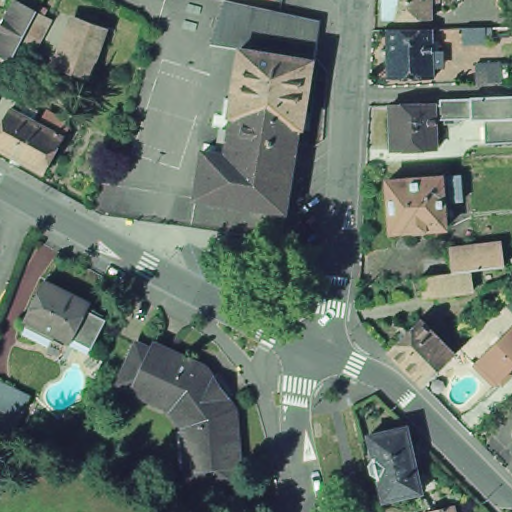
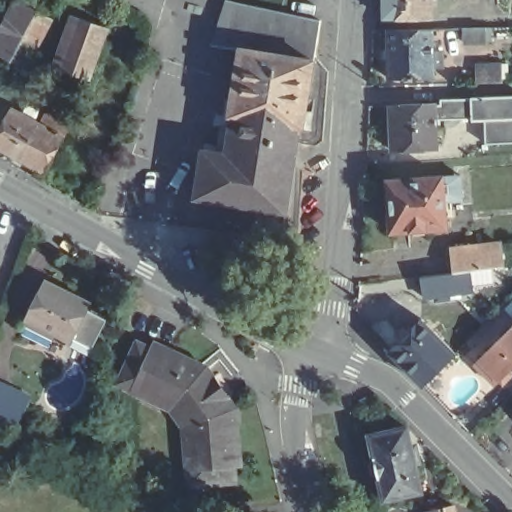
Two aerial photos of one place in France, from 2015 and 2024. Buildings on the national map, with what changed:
unchanged [(20,0),(39,11),(52,18),(27,66),(13,59),(0,53),(0,37),(20,0)]
unchanged [(247,47),(218,42),(232,0),(235,0),(287,11),(325,19),(325,21),(320,59),(247,47)]
unchanged [(380,19),(380,0),(428,0),(428,19),(380,19)]
unchanged [(90,72),(62,62),(75,27),(102,37),(90,72)]
unchanged [(487,42),(464,42),(463,28),(486,28),(487,42)]
unchanged [(443,61),(434,61),(435,78),(390,78),(389,30),(433,30),(434,52),(443,52),(443,61)]
unchanged [(305,125),(291,211),(202,197),(210,150),(222,152),(230,96),(239,97),(247,47),(320,59),(309,126),(305,125)]
unchanged [(478,76),(478,57),(504,57),(505,76),(478,76)]
unchanged [(387,106),(432,104),(437,104),(437,99),(467,98),(512,96),(512,119),(482,120),(468,121),(468,109),(432,110),(433,149),(388,151),(387,106)]
unchanged [(0,147),(0,131),(13,107),(41,123),(49,109),(73,123),(65,137),(46,172),(0,147)]
unchanged [(482,120),(512,119),(512,143),(482,144),(482,120)]
unchanged [(384,176),(448,171),(451,196),(440,197),(442,222),(387,227),(384,176)]
unchanged [(435,296),(423,298),(421,277),(432,276),(446,274),(455,273),(452,250),(478,247),(502,244),(505,267),(482,269),(481,270),(472,271),(474,291),(448,295),(450,301),(436,303),(435,296)]
unchanged [(87,346),(70,337),(67,343),(50,335),(25,322),(22,321),(41,282),(87,305),(84,311),(101,320),(87,346)]
unchanged [(422,315),(456,349),(423,381),(390,347),(422,315)]
unchanged [(478,360),(505,335),(512,328),(512,370),(500,382),(497,385),(495,386),(474,365),(478,360)]
unchanged [(148,338),(162,344),(164,338),(210,360),(207,368),(215,380),(223,375),(237,393),(228,398),(236,410),(246,409),(251,461),(245,462),(247,478),(201,482),(200,466),(197,466),(193,423),(201,422),(184,399),(181,405),(142,387),(142,385),(128,379),(148,338)]
unchanged [(37,401),(25,424),(0,412),(0,384),(37,401)]
unchanged [(423,492),(385,500),(380,475),(378,476),(373,472),(372,465),(375,460),(377,460),(372,436),(408,427),(423,492)]
unchanged [(428,508),(455,501),(457,512),(429,512),(428,508)]

